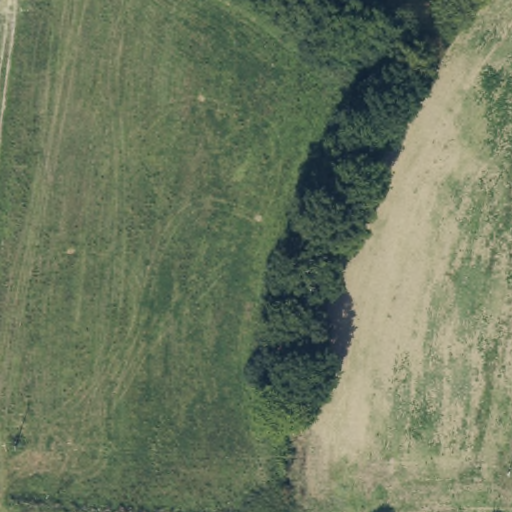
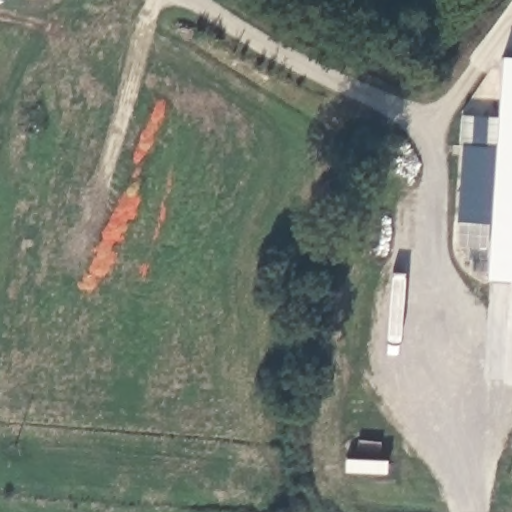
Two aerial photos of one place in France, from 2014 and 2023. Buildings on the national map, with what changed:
new [(501,57),(512,58),(512,282),(486,280),(501,57)]
new [(488,249),(451,247),(460,115),(497,118),(488,249)]

